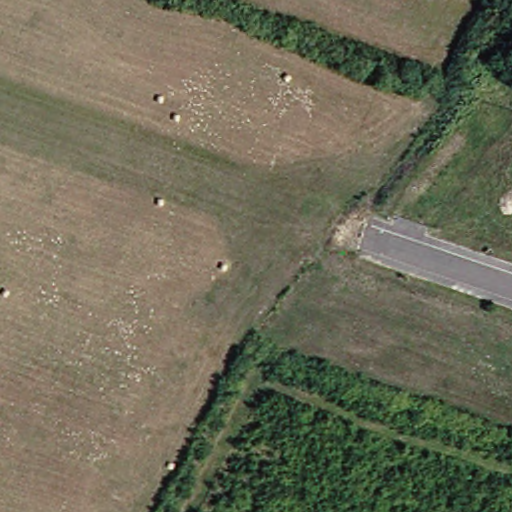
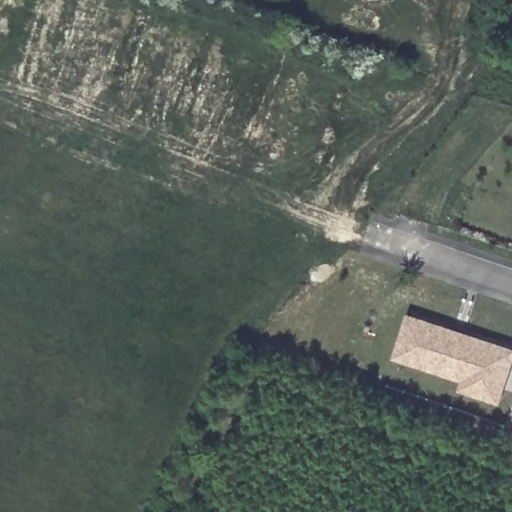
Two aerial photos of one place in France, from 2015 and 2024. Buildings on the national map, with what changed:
new [(457,387),(461,378),(411,360),(393,353),(407,314),(426,320),(509,350),(492,400),(457,387)]

